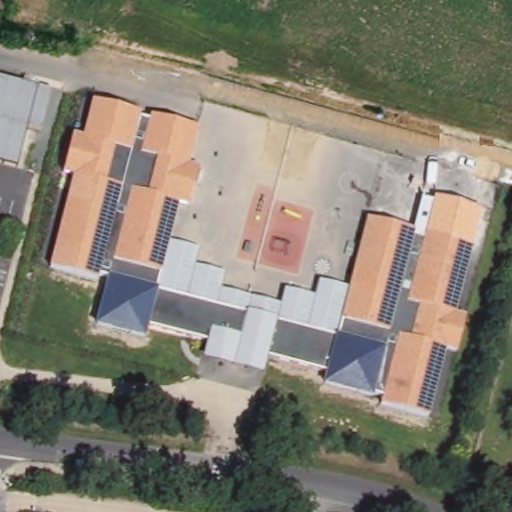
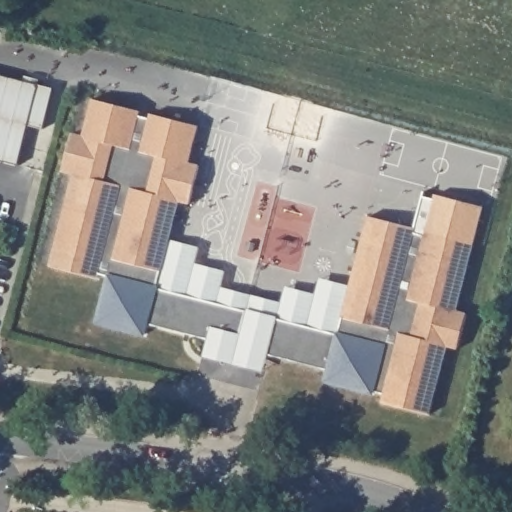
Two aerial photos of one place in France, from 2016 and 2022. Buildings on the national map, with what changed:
unchanged [(50,93),(41,133),(27,129),(16,169),(0,165),(0,79),(50,93)]
unchanged [(456,313),(465,316),(456,351),(446,348),(428,418),(383,408),(385,398),(376,395),(373,398),(325,385),(327,371),(269,356),(265,375),(203,359),(207,342),(151,326),(147,340),(96,328),(107,281),(100,278),(97,283),(48,270),(70,180),(60,177),(70,136),(82,138),(90,102),(138,115),(137,120),(147,122),(149,116),(199,130),(188,166),(198,169),(188,209),(177,205),(168,246),(199,251),(196,268),(224,275),(220,288),(282,307),(287,290),(317,296),(318,285),(349,293),(366,219),(415,234),(413,239),(423,241),(436,190),(487,204),(456,313)]

